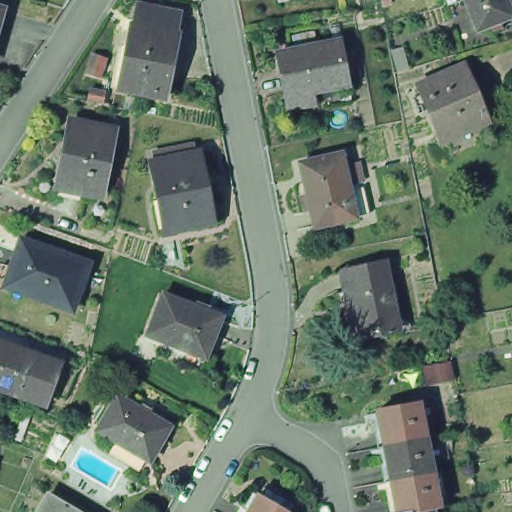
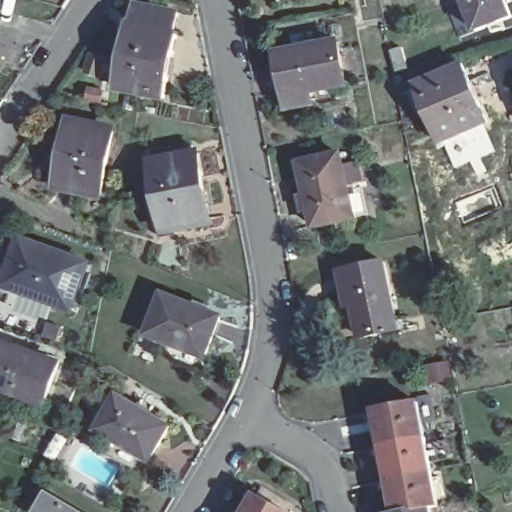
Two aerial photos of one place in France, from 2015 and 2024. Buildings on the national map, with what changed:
unchanged [(465,0),(460,1),(460,0),(465,0)]
unchanged [(460,1),(465,0),(500,0),(507,19),(495,24),(497,31),(489,35),(485,28),(473,33),(460,1)]
unchanged [(117,91),(132,28),(133,29),(137,9),(177,17),(174,39),(178,40),(164,103),(117,91)]
unchanged [(0,22),(0,14),(2,15),(0,22)]
unchanged [(347,83),(310,91),(312,101),(287,106),(277,55),(340,42),(347,83)]
unchanged [(398,69),(392,50),(407,45),(413,65),(398,69)]
unchanged [(465,66),(487,121),(440,141),(425,103),(418,106),(415,97),(422,94),(419,84),(465,66)]
unchanged [(57,185),(69,121),(113,131),(101,194),(57,185)]
unchanged [(166,235),(169,235),(162,203),(160,203),(159,201),(162,200),(155,169),(159,168),(157,160),(192,154),(197,153),(199,161),(202,160),(215,228),(167,237),(166,235)]
unchanged [(342,158),(357,222),(316,232),(301,168),(342,158)]
unchanged [(0,291),(0,281),(4,271),(11,274),(22,245),(89,268),(74,316),(0,291)]
unchanged [(340,291),(337,272),(382,263),(394,320),(398,320),(400,333),(380,338),(379,332),(356,337),(347,290),(340,291)]
unchanged [(181,364),(182,358),(170,353),(172,347),(139,334),(155,293),(222,319),(207,360),(202,372),(181,364)]
unchanged [(47,401),(10,388),(9,392),(0,392),(0,340),(60,362),(47,401)]
unchanged [(104,452),(112,438),(97,430),(119,395),(172,426),(150,462),(142,476),(104,452)]
unchanged [(414,406),(412,400),(427,397),(432,423),(417,426),(420,441),(377,448),(370,415),(414,406)]
unchanged [(420,441),(422,447),(431,445),(434,457),(424,459),(427,475),(385,484),(377,448),(420,441)]
unchanged [(434,511),(429,512),(426,512),(390,512),(385,484),(427,475),(434,511)]
unchanged [(49,494),(80,512),(38,512),(49,494)]
unchanged [(252,500),(274,512),(245,512),(252,500)]

